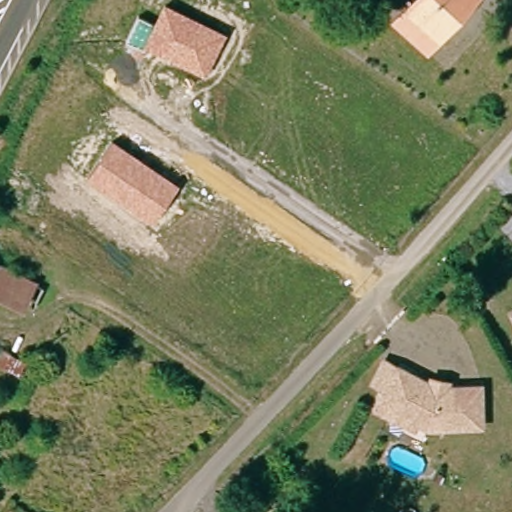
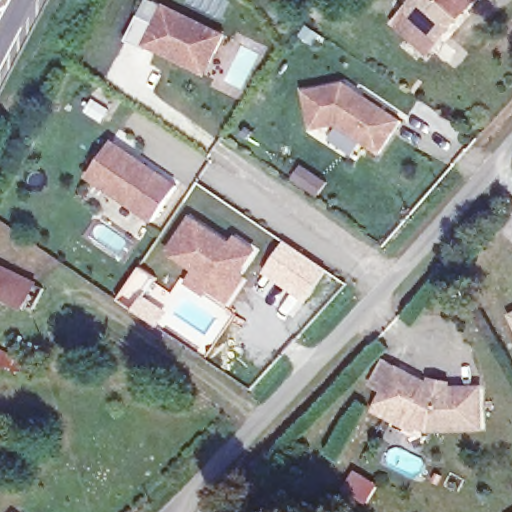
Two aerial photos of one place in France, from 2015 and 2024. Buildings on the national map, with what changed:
unchanged [(394,24),(408,7),(414,0),(463,0),(448,17),(452,22),(438,37),(425,52),(394,24)]
unchanged [(126,40),(137,15),(153,22),(162,2),(226,34),(207,77),(126,40)]
new [(378,154),(333,126),(311,131),(302,91),(343,82),(401,121),(378,154)]
unchanged [(87,176),(112,140),(180,185),(152,221),(87,176)]
new [(242,273),(247,277),(229,304),(209,292),(205,297),(184,283),(193,271),(167,253),(191,216),(231,242),(236,235),(258,250),(242,273)]
new [(325,272),(305,299),(265,272),(286,242),(325,272)]
unchanged [(29,306),(0,292),(0,265),(40,286),(29,306)]
unchanged [(382,414),(392,394),(378,387),(390,366),(403,372),(436,389),(437,383),(453,387),(452,392),(486,391),(488,430),(435,432),(422,427),(419,433),(397,422),(382,414)]

